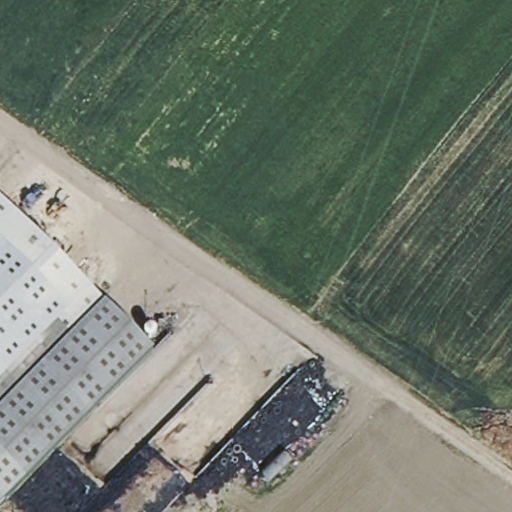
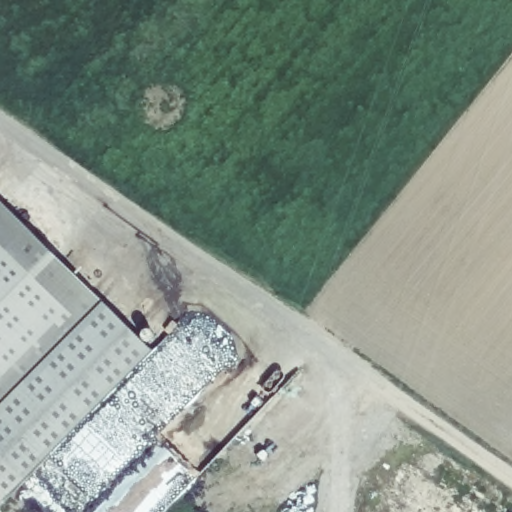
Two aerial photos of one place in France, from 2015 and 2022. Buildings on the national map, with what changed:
unchanged [(0,353),(0,198),(78,277),(0,353)]
unchanged [(9,497),(0,506),(0,353),(78,277),(154,353),(9,497)]

